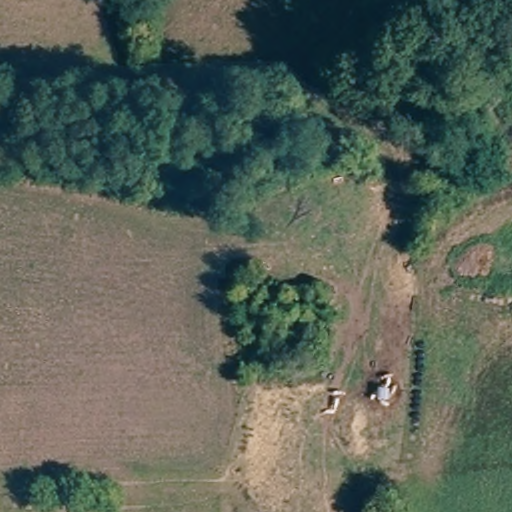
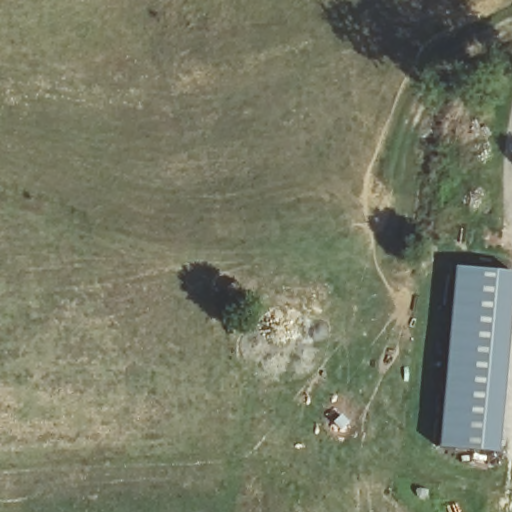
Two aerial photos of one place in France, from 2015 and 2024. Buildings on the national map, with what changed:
new [(512,289),(497,453),(437,447),(453,268),(512,272),(512,289)]
demolished [(287,305),(290,284),(332,285),(331,357),(260,357),(262,305),(287,305)]

